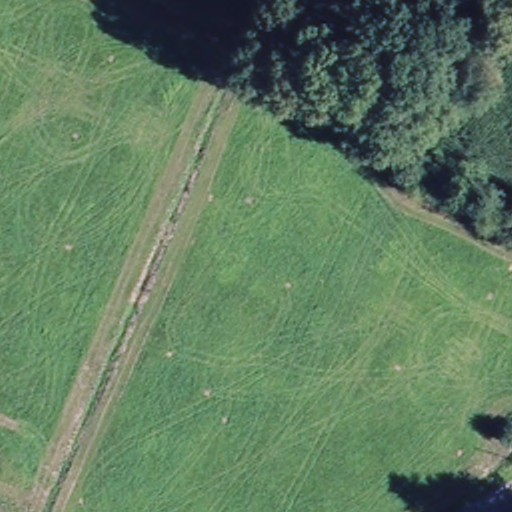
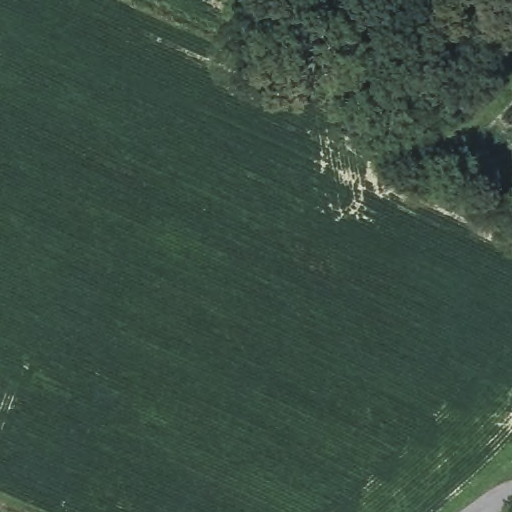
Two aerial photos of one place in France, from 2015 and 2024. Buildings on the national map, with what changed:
[]

